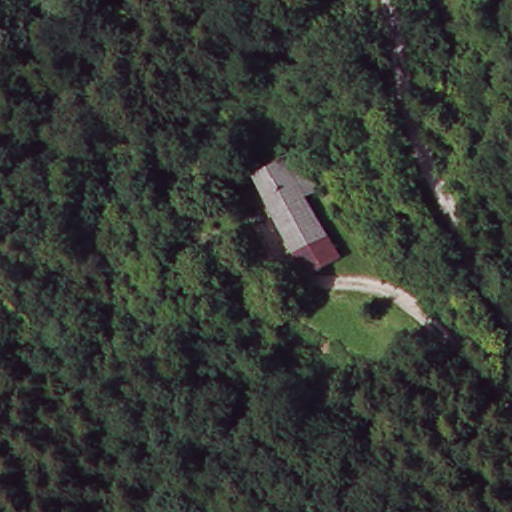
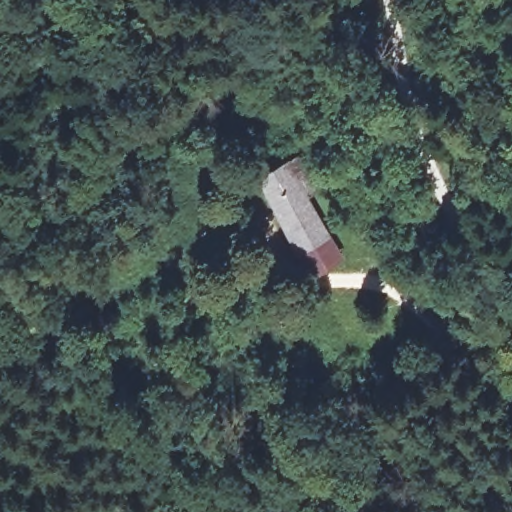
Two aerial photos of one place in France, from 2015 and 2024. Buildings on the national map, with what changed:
unchanged [(324,199),(307,210),(340,258),(312,271),(257,183),(299,160),(324,199)]

